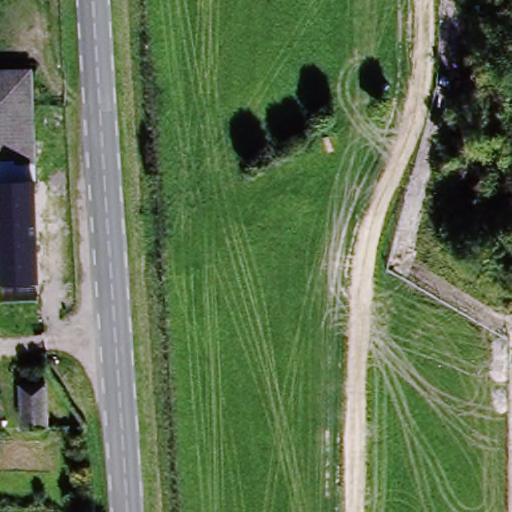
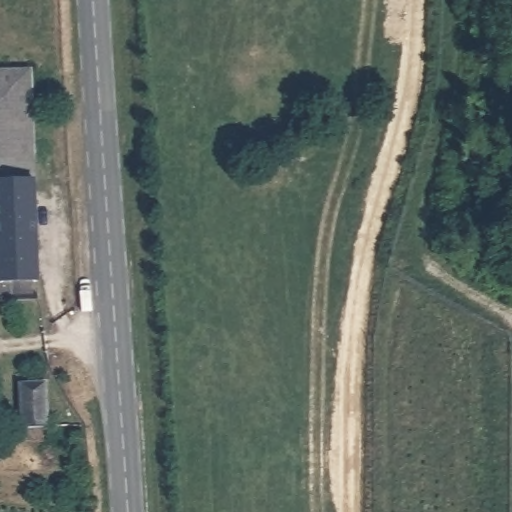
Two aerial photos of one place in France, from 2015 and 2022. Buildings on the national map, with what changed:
unchanged [(0,183),(0,73),(31,72),(32,180),(0,183)]
unchanged [(35,287),(0,289),(0,183),(32,180),(35,287)]
unchanged [(49,385),(48,428),(20,428),(21,385),(49,385)]

